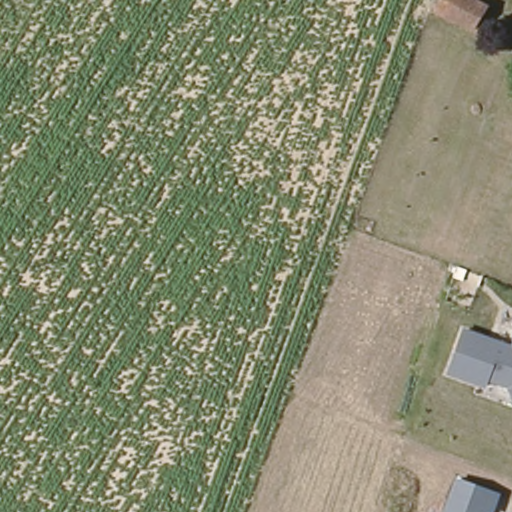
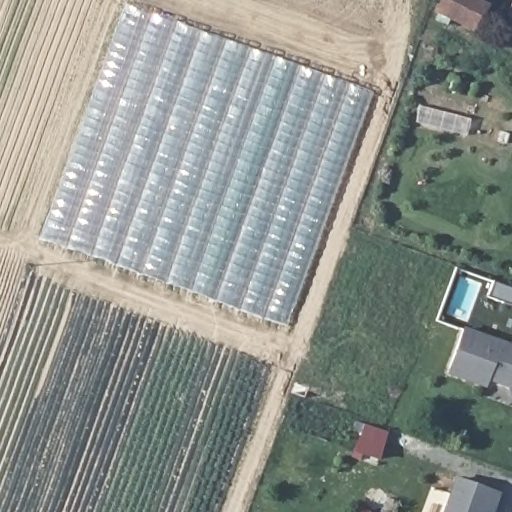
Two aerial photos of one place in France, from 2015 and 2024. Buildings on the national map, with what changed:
unchanged [(484,11),(471,38),(435,18),(444,0),(464,0),(484,11)]
new [(285,325),(36,239),(123,3),(369,91),(285,325)]
unchanged [(509,345),(512,339),(512,396),(508,386),(502,387),(486,383),(484,388),(446,375),(462,331),(509,345)]
unchanged [(499,493),(493,512),(443,512),(455,478),(499,493)]

